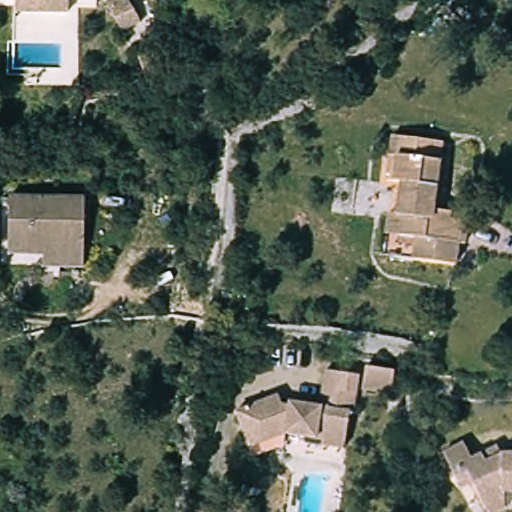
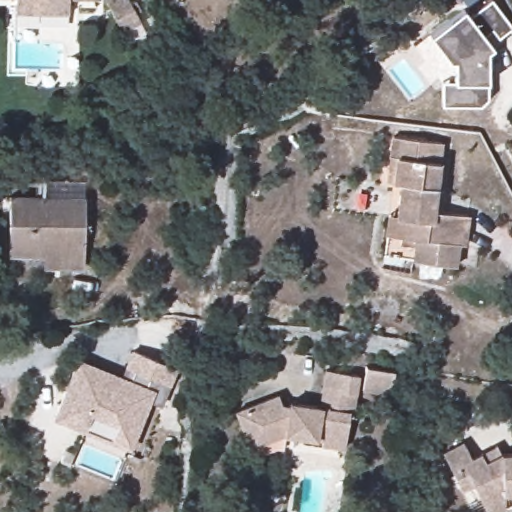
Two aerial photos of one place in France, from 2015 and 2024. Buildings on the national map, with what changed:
unchanged [(14,11),(14,0),(67,0),(67,11),(14,11)]
unchanged [(130,0),(141,20),(120,28),(107,0),(130,0)]
new [(469,16),(490,0),(492,0),(512,27),(512,28),(499,39),(492,30),(485,36),(493,48),(487,52),(487,83),(487,99),(480,106),(441,106),(440,81),(453,81),(453,61),(447,61),(429,36),(464,10),(469,16)]
unchanged [(387,215),(400,217),(404,185),(390,184),(395,139),(445,145),(440,190),(449,191),(446,214),(471,217),(468,246),(460,246),(457,268),(416,264),(419,241),(405,239),(385,237),(387,215)]
unchanged [(75,266),(50,265),(50,249),(39,248),(39,252),(0,251),(0,240),(2,198),(78,202),(75,266)]
new [(161,406),(150,402),(132,449),(111,442),(116,425),(89,416),(83,431),(53,418),(78,359),(120,377),(124,367),(131,351),(177,369),(170,386),(161,406)]
unchanged [(359,366),(386,371),(382,395),(355,391),(359,366)]
unchanged [(246,444),(233,412),(276,393),(280,402),(285,400),(310,404),(315,369),(355,376),(349,410),(344,409),(338,447),(309,442),(309,439),(280,434),(248,448),(246,444)]
unchanged [(467,459),(493,447),(497,454),(512,453),(512,512),(510,512),(483,512),(469,485),(457,491),(439,454),(459,443),(467,459)]

